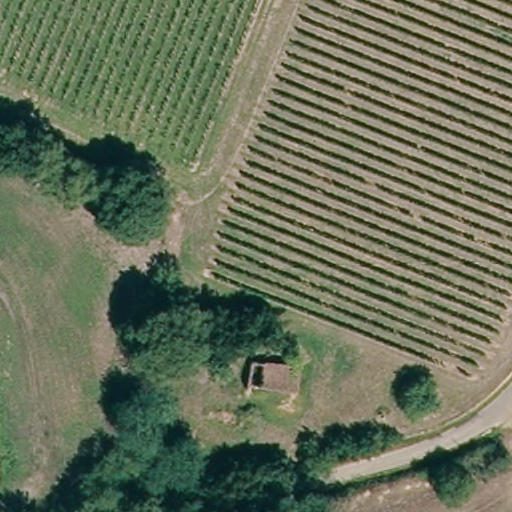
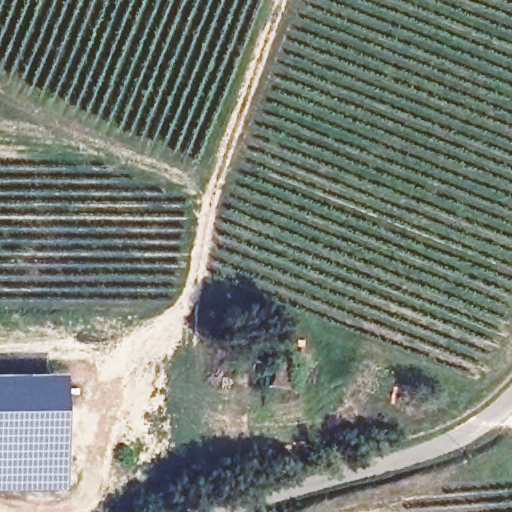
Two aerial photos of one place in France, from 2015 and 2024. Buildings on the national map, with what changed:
demolished [(301,365),(297,390),(248,383),(251,357),(301,365)]
new [(0,490),(0,375),(65,374),(67,490),(0,490)]
demolished [(3,475),(0,475),(0,451),(3,475)]

